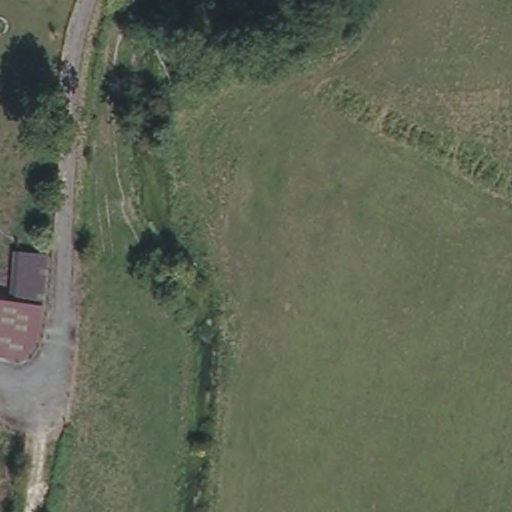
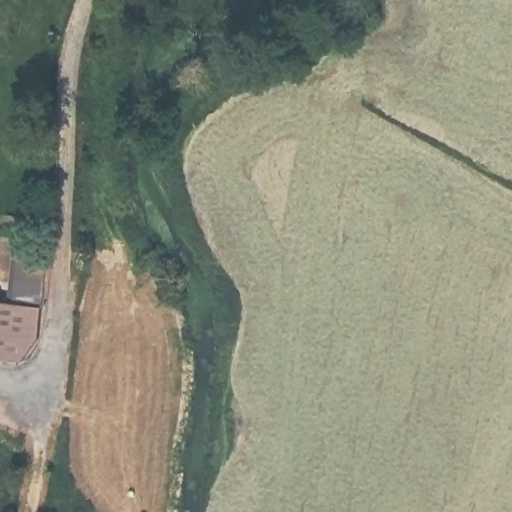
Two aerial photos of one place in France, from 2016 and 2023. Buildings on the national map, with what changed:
unchanged [(52,255),(48,310),(10,304),(17,253),(52,255)]
unchanged [(40,340),(23,361),(0,358),(0,301),(10,304),(40,309),(40,340)]

